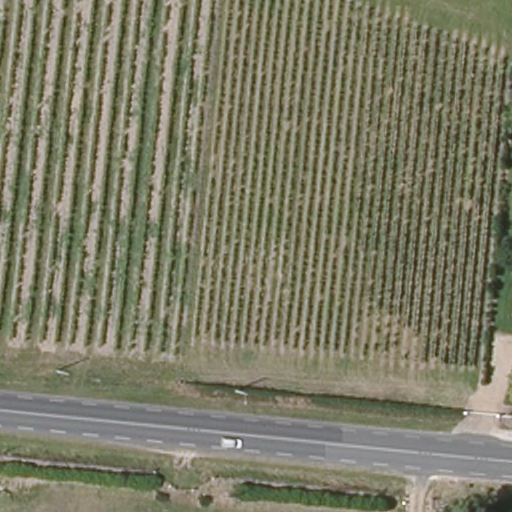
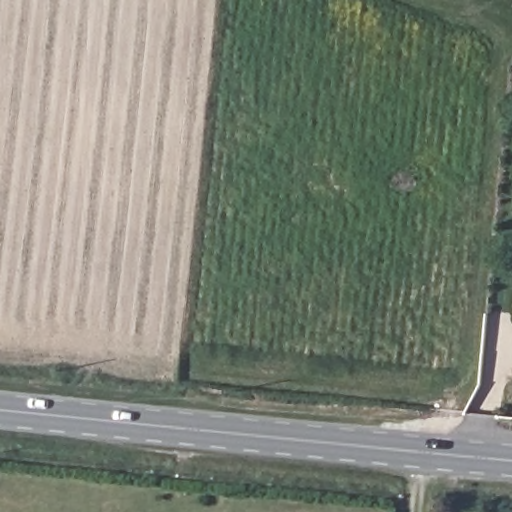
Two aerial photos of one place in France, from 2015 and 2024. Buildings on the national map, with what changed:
[]

